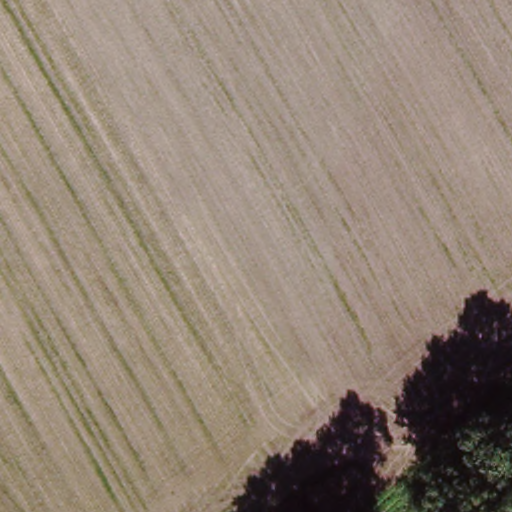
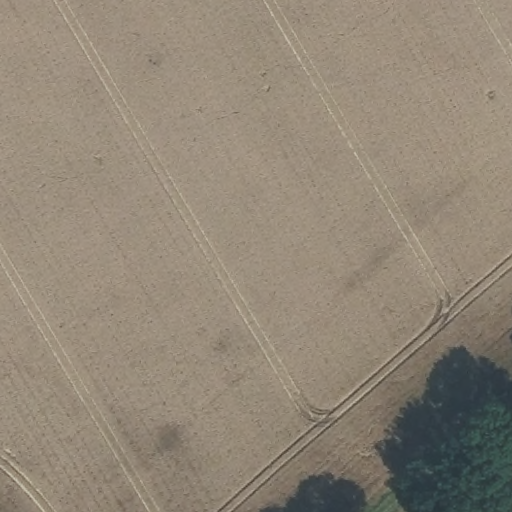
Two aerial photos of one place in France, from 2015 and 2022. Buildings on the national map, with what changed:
unchanged [(448,511),(449,512),(427,512),(440,502),(448,511)]

